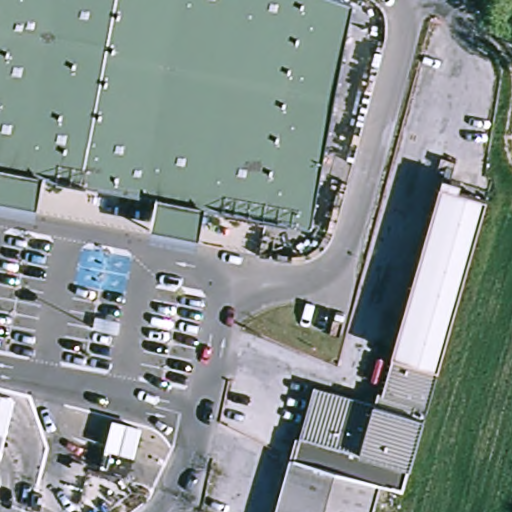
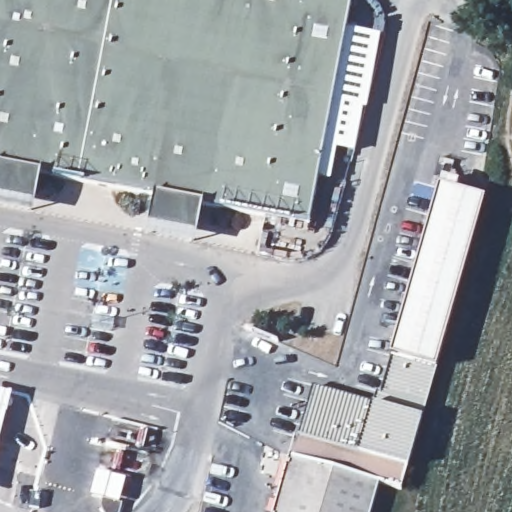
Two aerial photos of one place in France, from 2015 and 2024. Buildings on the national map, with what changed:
unchanged [(200,228),(160,220),(164,200),(46,177),(42,197),(0,189),(0,178),(2,168),(0,168),(0,0),(315,0),(272,222),(208,209),(204,229),(200,228)]
unchanged [(359,8),(315,230),(272,222),(315,0),(338,0),(359,8)]
unchanged [(375,484),(307,469),(284,457),(305,388),(379,409),(445,187),(456,191),(452,200),(481,208),(398,489),(375,484)]
unchanged [(0,462),(0,394),(20,398),(5,463),(0,462)]
unchanged [(103,451),(111,419),(148,428),(139,460),(103,451)]
unchanged [(366,512),(268,512),(284,457),(307,469),(375,484),(366,512)]

